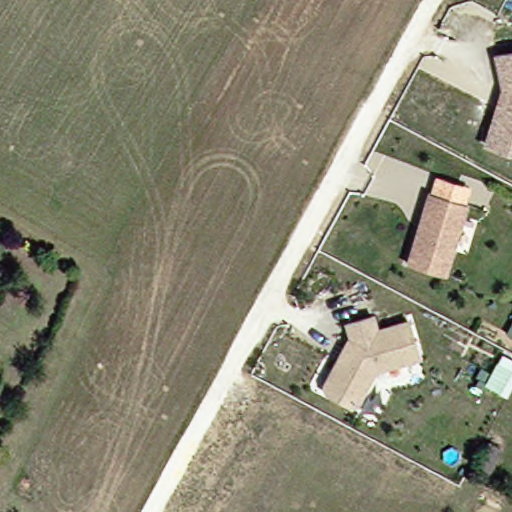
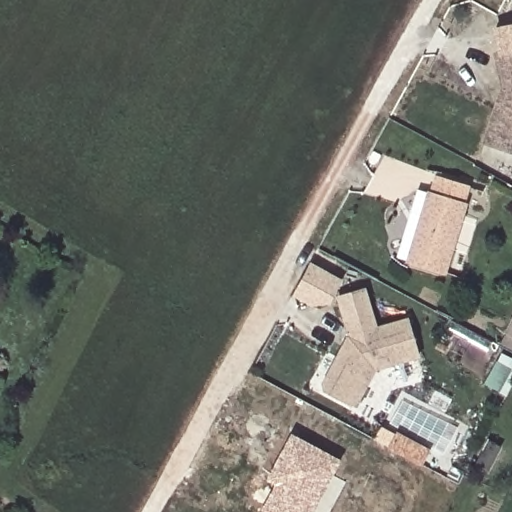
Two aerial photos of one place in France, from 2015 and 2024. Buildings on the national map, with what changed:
unchanged [(506,90),(507,91),(500,56),(512,53),(512,151),(498,147),(490,144),(506,90)]
unchanged [(406,263),(428,193),(465,205),(443,275),(406,263)]
new [(331,303),(309,305),(292,295),(310,261),(342,279),(331,303)]
unchanged [(380,326),(410,319),(418,351),(420,356),(415,357),(376,366),(356,403),(323,385),(350,334),(351,335),(347,319),(376,312),(380,326)]
unchanged [(507,335),(512,326),(512,338),(507,335)]
new [(423,464),(373,439),(381,425),(395,433),(396,429),(431,449),(423,464)]
new [(260,512),(275,484),(266,480),(291,432),(341,460),(313,512),(260,512)]

